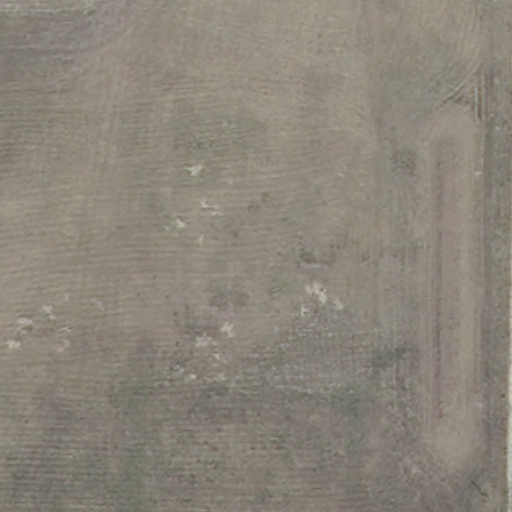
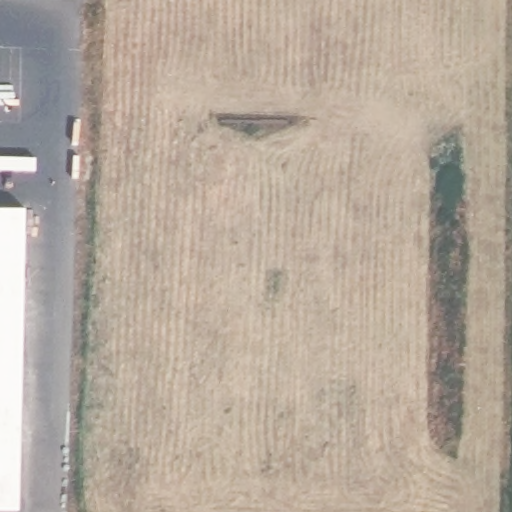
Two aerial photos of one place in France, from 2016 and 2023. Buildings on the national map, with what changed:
new [(34,512),(0,512),(0,206),(40,206),(34,512)]

